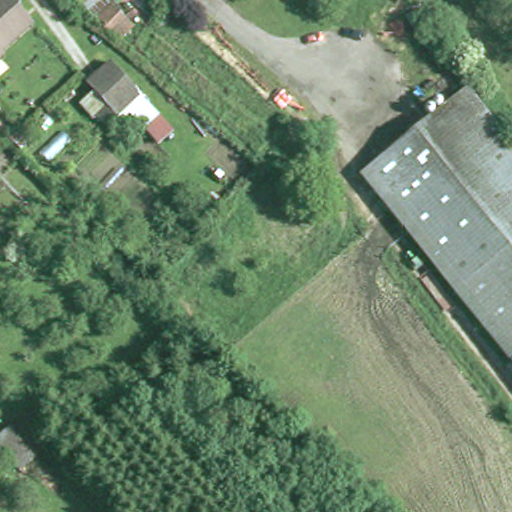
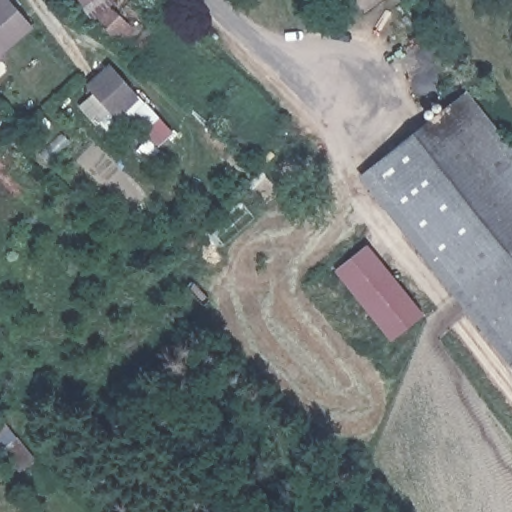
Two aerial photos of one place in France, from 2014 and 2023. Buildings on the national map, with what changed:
unchanged [(37,26),(6,56),(7,59),(0,66),(0,0),(12,0),(37,26)]
unchanged [(95,20),(110,5),(131,25),(117,40),(110,35),(95,20)]
unchanged [(175,137),(164,149),(133,119),(118,132),(99,115),(95,118),(80,100),(112,66),(175,137)]
unchanged [(372,171),(476,87),(512,135),(512,353),(372,171)]
unchanged [(0,120),(0,112),(4,116),(0,120)]
new [(425,314),(391,340),(335,270),(367,244),(425,314)]
new [(15,475),(0,456),(0,415),(36,458),(15,475)]

